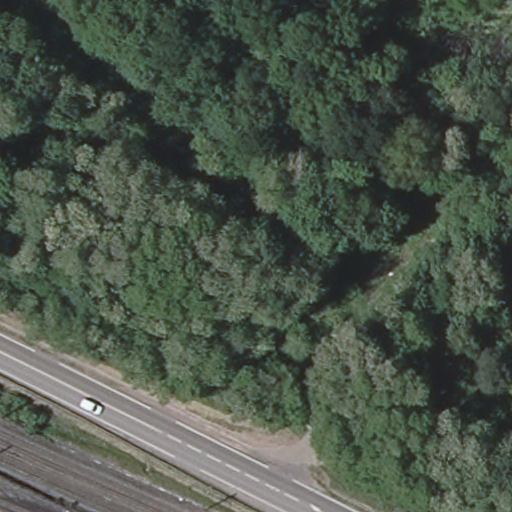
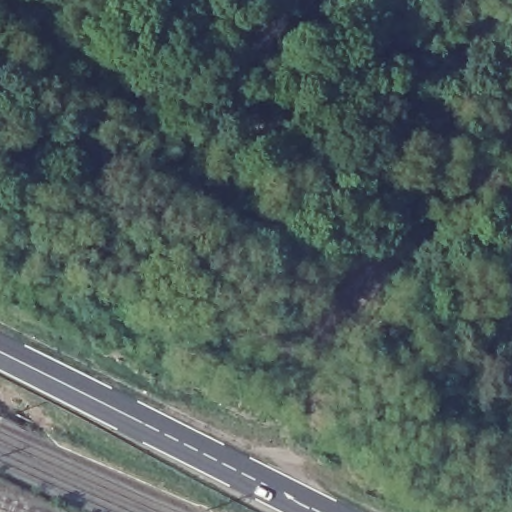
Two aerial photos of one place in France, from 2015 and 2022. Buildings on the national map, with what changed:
unchanged [(390,302),(375,318),(363,331),(330,301),(341,289),(358,272),(390,302)]
unchanged [(311,343),(272,341),(243,335),(239,355),(182,342),(193,296),(249,310),(275,316),(313,319),(311,343)]
unchanged [(505,427),(488,447),(454,428),(466,409),(505,427)]

